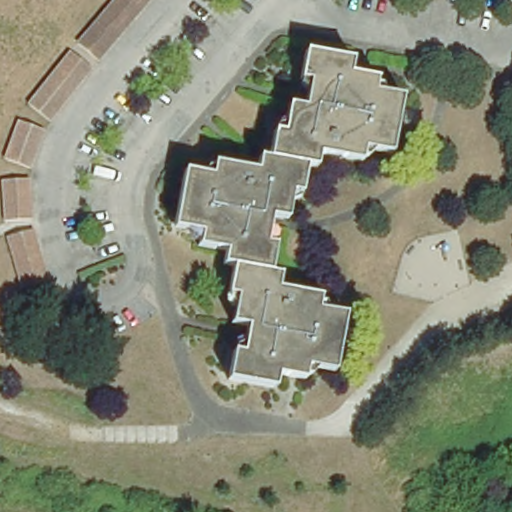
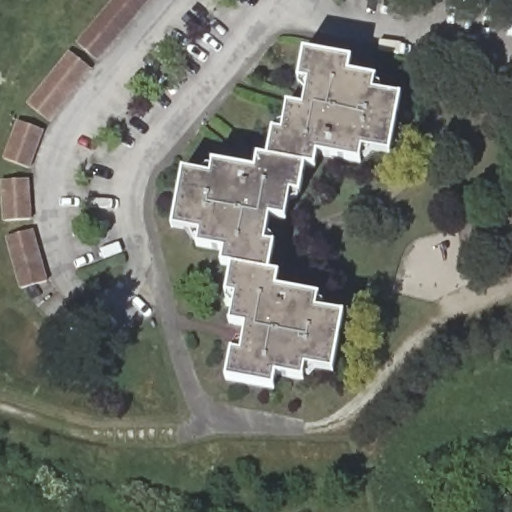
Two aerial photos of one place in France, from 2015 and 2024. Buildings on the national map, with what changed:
unchanged [(78,40),(111,0),(152,0),(102,60),(78,40)]
unchanged [(51,123),(29,106),(73,51),(94,69),(51,123)]
unchanged [(387,150),(363,147),(360,159),(316,151),(313,165),(302,164),(297,192),(289,191),(284,217),(268,215),(264,244),(272,246),(268,272),(275,274),(274,288),(318,296),(316,309),(341,315),(331,367),(305,364),(303,377),(274,373),(271,385),(229,377),(234,353),(242,354),(247,325),(230,321),(235,295),(228,294),(233,265),(224,263),(225,249),(200,244),(201,232),(175,226),(184,173),(211,177),(214,163),(256,169),(259,157),(269,158),(274,131),(282,133),(288,105),(303,107),(308,80),(300,79),(305,53),(349,60),(346,74),(375,79),(373,91),(398,96),(387,150)]
unchanged [(27,167),(1,159),(12,120),(40,128),(27,167)]
unchanged [(0,180),(28,175),(34,217),(6,221),(0,180)]
unchanged [(8,232),(36,228),(45,281),(17,286),(8,232)]

